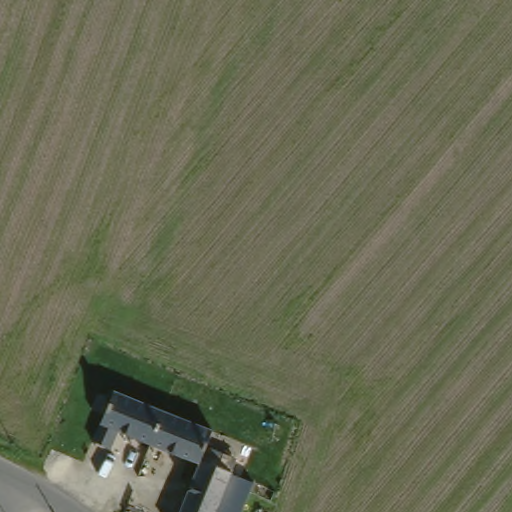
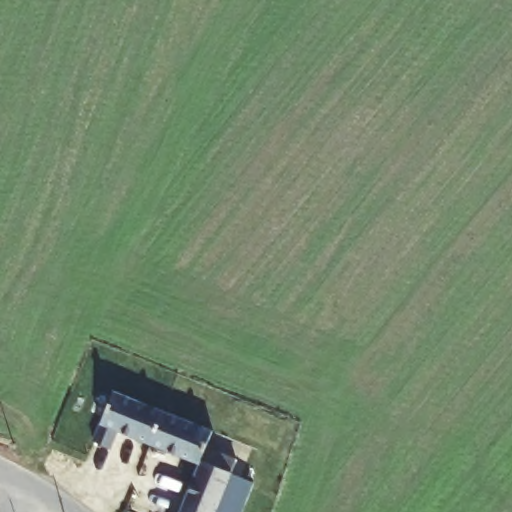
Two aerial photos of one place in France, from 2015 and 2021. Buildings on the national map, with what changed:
unchanged [(200,466),(198,470),(119,435),(111,450),(93,441),(116,392),(210,432),(200,466)]
unchanged [(228,477),(216,512),(182,512),(198,470),(200,466),(228,477)]
unchanged [(235,512),(216,512),(228,477),(245,484),(235,512)]

